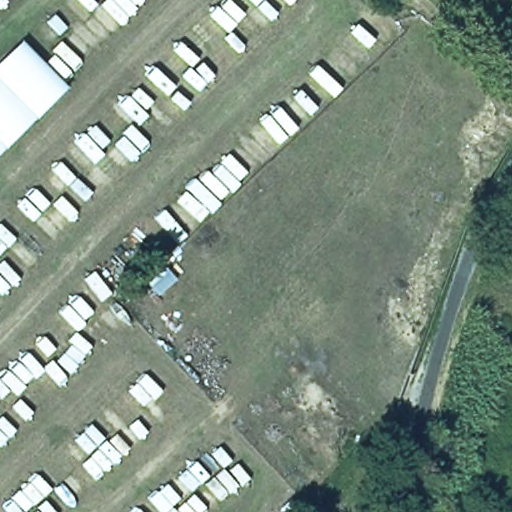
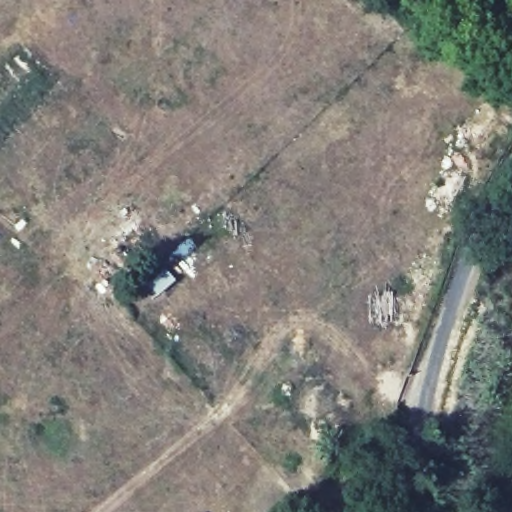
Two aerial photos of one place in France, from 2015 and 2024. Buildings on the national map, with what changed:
new [(0,63),(22,42),(67,89),(0,154),(0,63)]
unchanged [(165,267),(177,281),(157,304),(139,285),(165,267)]

